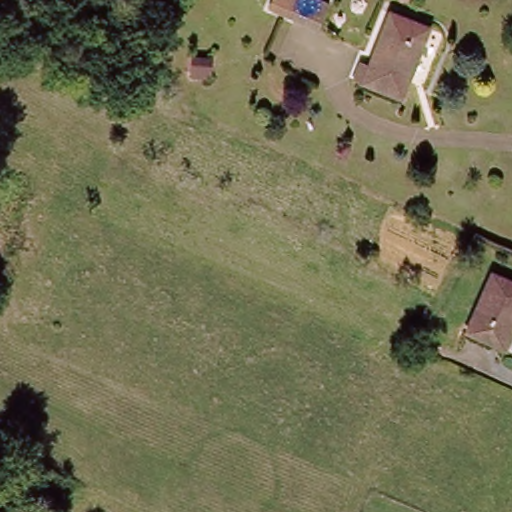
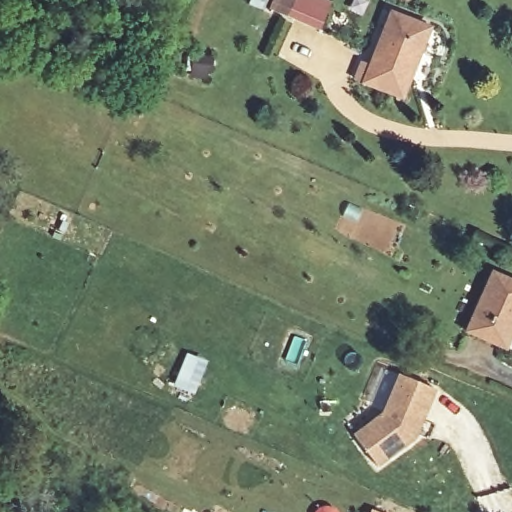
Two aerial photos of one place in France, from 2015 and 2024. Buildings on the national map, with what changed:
unchanged [(265,7),(269,0),(314,0),(326,5),(315,30),(265,7)]
unchanged [(362,62),(371,66),(392,15),(431,30),(402,98),(365,82),(356,79),(362,62)]
unchanged [(212,58),(211,73),(205,72),(205,80),(190,77),(190,70),(184,70),(185,55),(212,58)]
unchanged [(512,284),(512,343),(508,351),(466,332),(491,275),(512,284)]
new [(354,435),(381,414),(399,375),(436,390),(414,440),(377,468),(354,435)]

